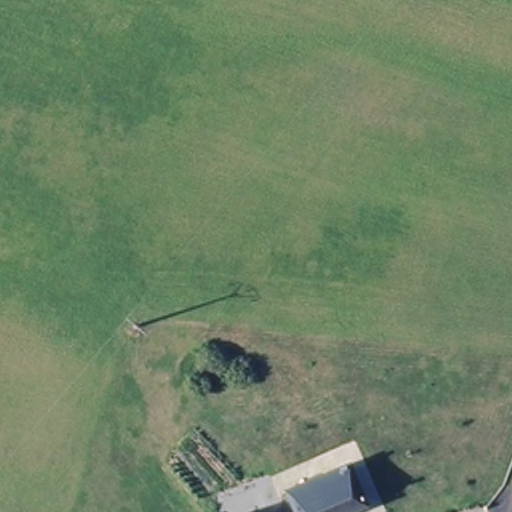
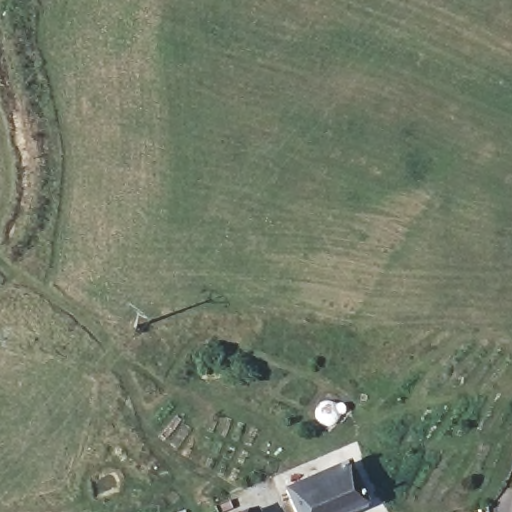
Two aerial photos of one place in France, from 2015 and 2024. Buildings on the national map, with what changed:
unchanged [(291,496),(286,487),(350,459),(371,506),(356,512),(298,512),(291,496)]
unchanged [(254,507),(256,512),(242,512),(254,507)]

